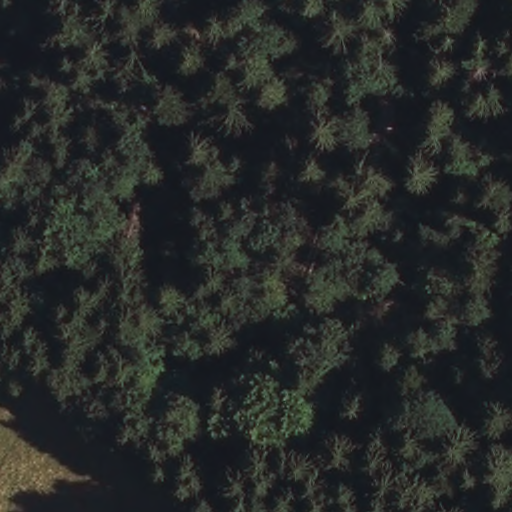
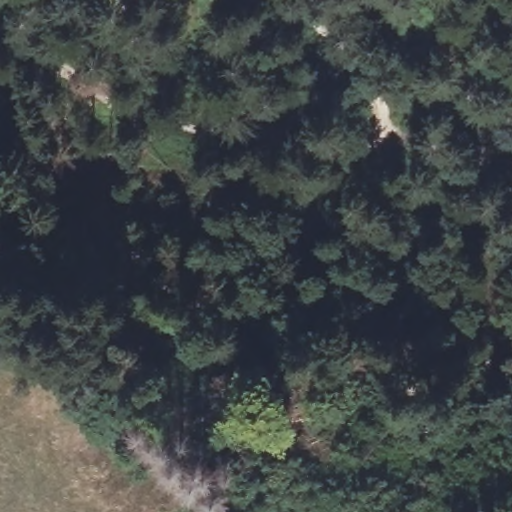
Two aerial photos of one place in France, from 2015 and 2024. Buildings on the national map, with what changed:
[]

